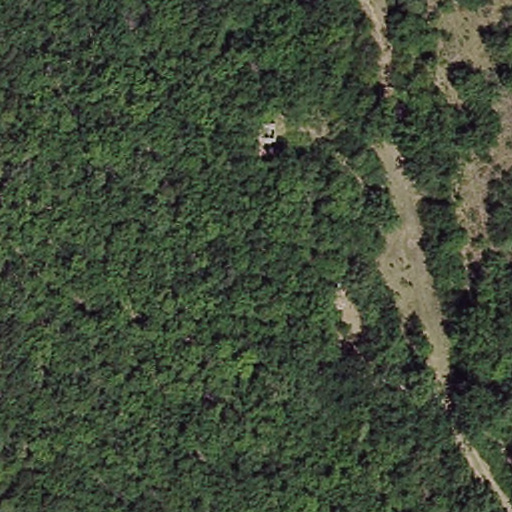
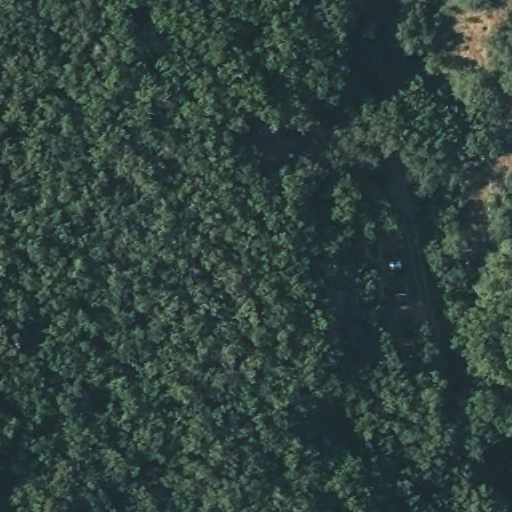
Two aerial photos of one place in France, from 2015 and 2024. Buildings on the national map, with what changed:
unchanged [(275,128),(274,164),(252,164),(252,127),(275,128)]
unchanged [(347,293),(343,326),(318,325),(321,287),(347,293)]

